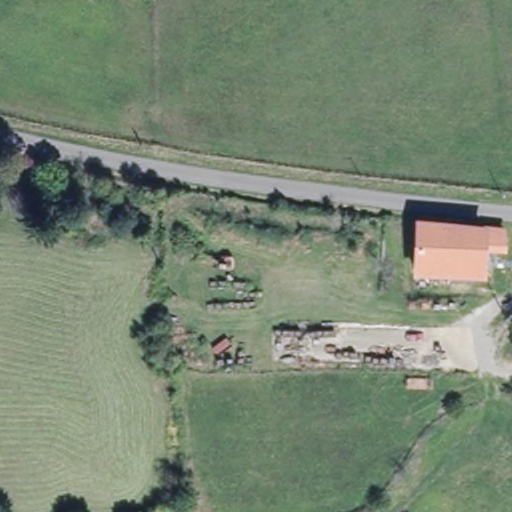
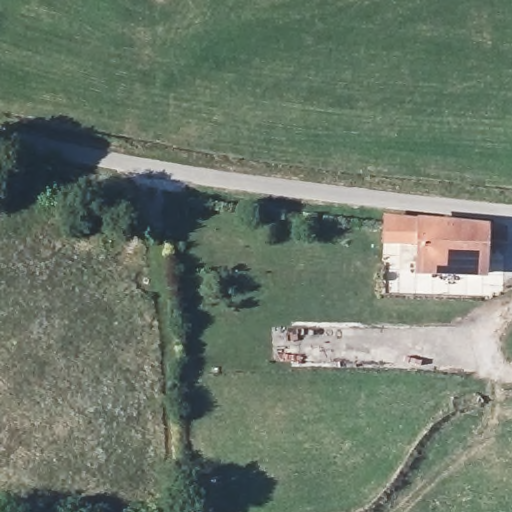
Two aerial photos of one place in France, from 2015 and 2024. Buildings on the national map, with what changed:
unchanged [(478,271),(413,269),(416,219),(481,223),(478,271)]

